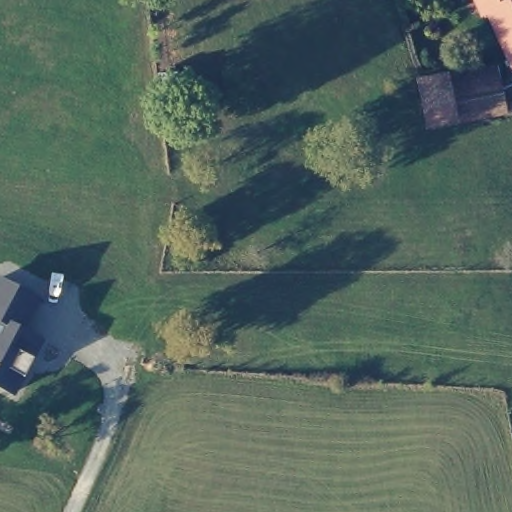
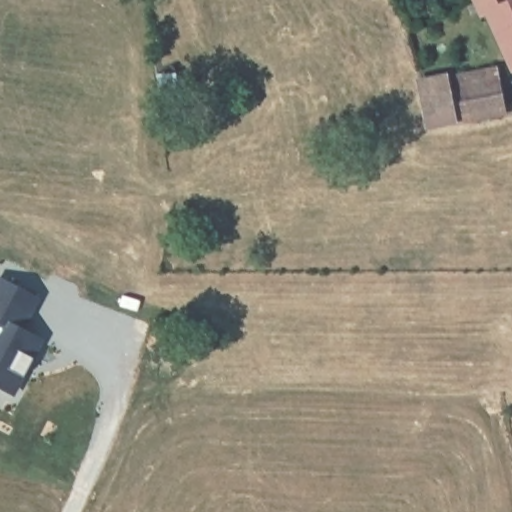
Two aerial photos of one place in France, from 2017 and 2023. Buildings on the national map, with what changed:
unchanged [(482,15),(476,17),(470,0),(512,0),(512,71),(509,72),(482,15)]
unchanged [(508,115),(425,130),(415,76),(447,69),(450,84),(496,75),(508,115)]
unchanged [(40,297),(24,328),(44,340),(14,396),(0,389),(0,275),(40,297)]

